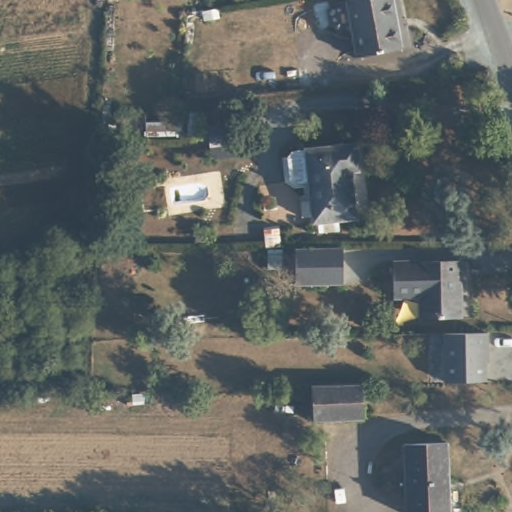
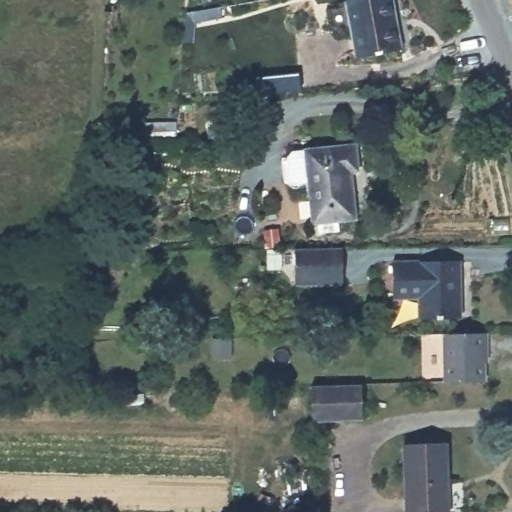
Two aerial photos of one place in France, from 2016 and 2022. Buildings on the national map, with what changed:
unchanged [(392,0),(396,25),(402,25),(405,48),(360,54),(351,0),(392,0)]
unchanged [(366,163),(362,163),(365,213),(346,213),(346,225),(328,225),(327,211),(315,211),(313,176),(294,177),(292,154),(304,146),(364,144),(366,163)]
unchanged [(117,241),(107,241),(108,225),(117,225),(117,241)]
unchanged [(345,284),(297,284),(297,247),(345,246),(345,284)]
unchanged [(281,247),(282,270),(265,270),(264,247),(281,247)]
unchanged [(423,318),(423,297),(395,298),(395,262),(461,262),(462,296),(462,317),(423,318)]
unchanged [(444,383),(443,334),(486,333),(485,350),(482,351),(481,382),(444,383)]
unchanged [(365,385),(367,421),(317,423),(317,387),(365,385)]
unchanged [(452,512),(409,512),(407,443),(451,443),(452,512)]

